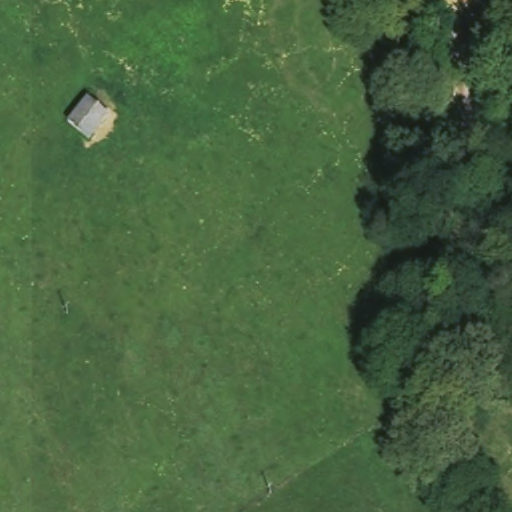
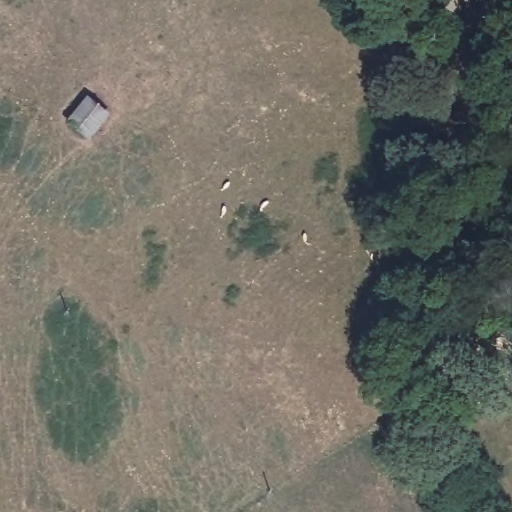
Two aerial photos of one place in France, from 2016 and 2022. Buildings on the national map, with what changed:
unchanged [(82,90),(105,103),(85,130),(62,114),(82,90)]

